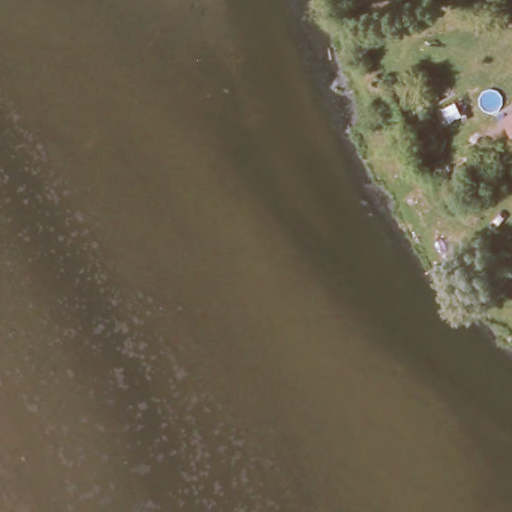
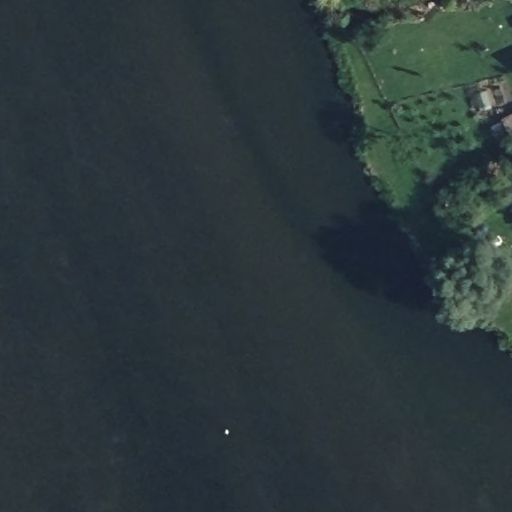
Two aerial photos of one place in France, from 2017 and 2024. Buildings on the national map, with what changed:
unchanged [(501,119),(512,112),(512,137),(511,137),(501,119)]

